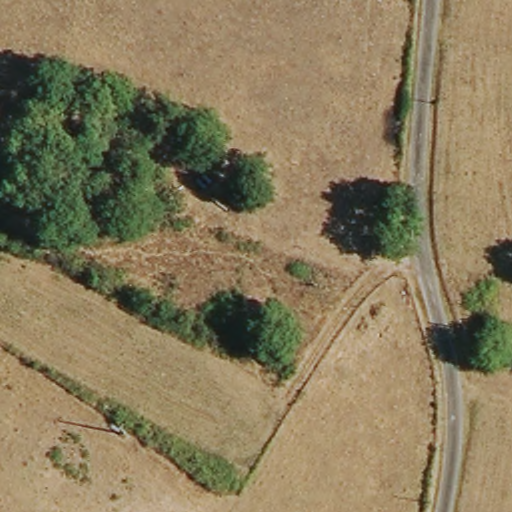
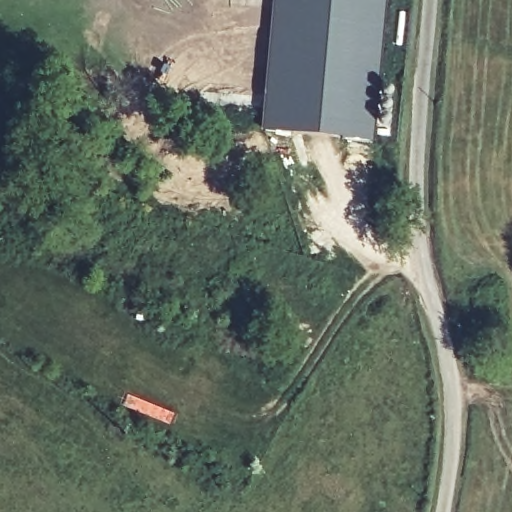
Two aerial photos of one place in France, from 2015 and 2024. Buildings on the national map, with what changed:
new [(262,132),(273,0),(387,0),(375,141),(262,132)]

